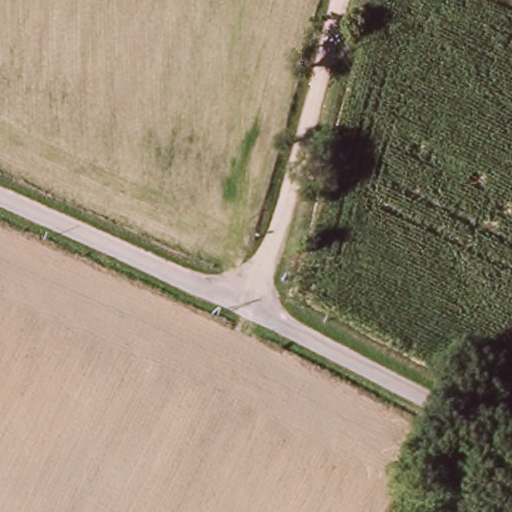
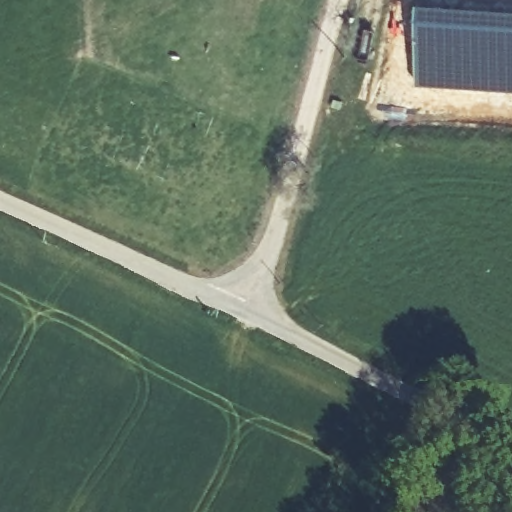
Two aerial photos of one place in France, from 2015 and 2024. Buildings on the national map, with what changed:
new [(421,0),(442,0),(512,5),(512,90),(415,85),(421,0)]

